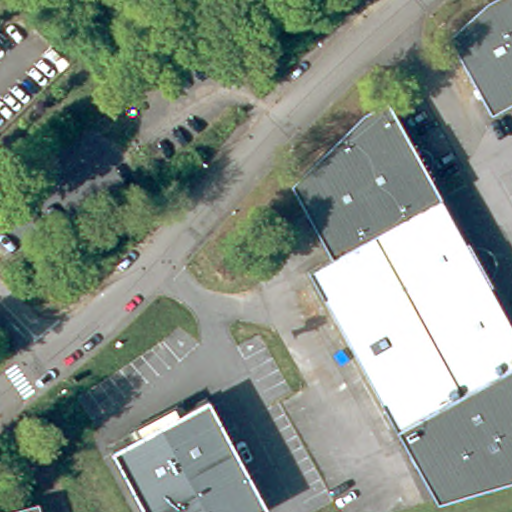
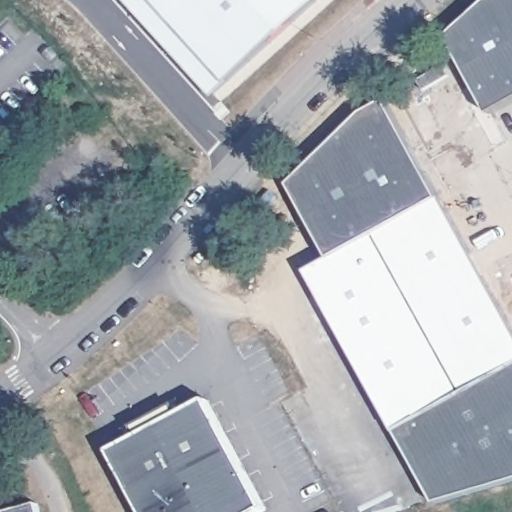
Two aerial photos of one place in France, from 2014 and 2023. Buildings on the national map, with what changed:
new [(131,0),(319,0),(217,94),(131,0)]
unchanged [(487,114),(442,39),(482,2),(487,0),(512,0),(512,100),(487,114)]
unchanged [(360,109),(381,97),(437,197),(326,255),(285,182),(360,109)]
unchanged [(437,197),(465,250),(480,254),(484,259),(480,277),(512,335),(512,360),(391,429),(302,268),(326,255),(437,197)]
unchanged [(512,360),(512,489),(470,512),(437,512),(391,429),(512,360)]
unchanged [(136,439),(130,430),(175,406),(182,417),(206,402),(267,512),(146,512),(114,451),(136,439)]
unchanged [(40,512),(0,512),(0,511),(37,501),(40,512)]

